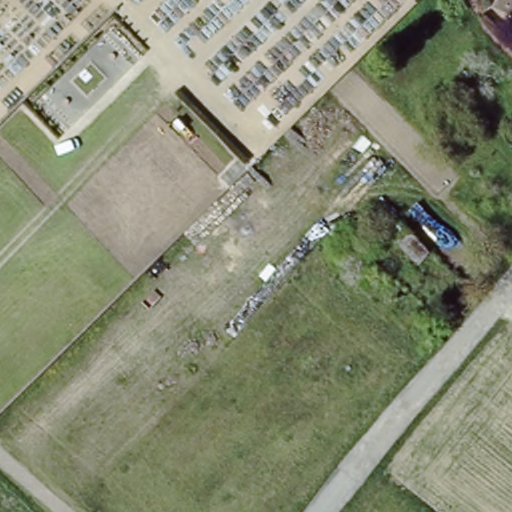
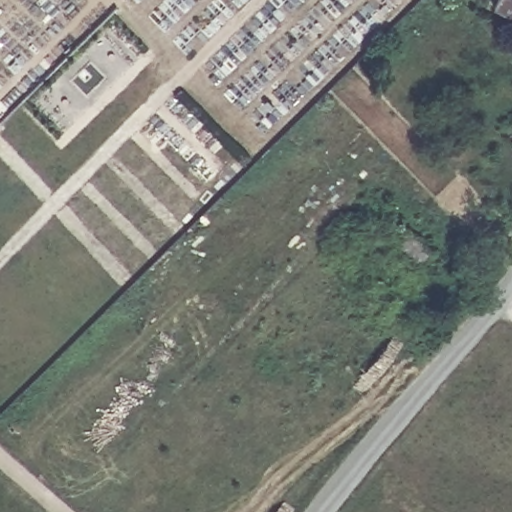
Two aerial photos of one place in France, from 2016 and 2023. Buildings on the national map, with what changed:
unchanged [(504,0),(512,0),(512,20),(497,12),(504,0)]
unchanged [(433,254),(423,263),(402,242),(412,232),(433,254)]

